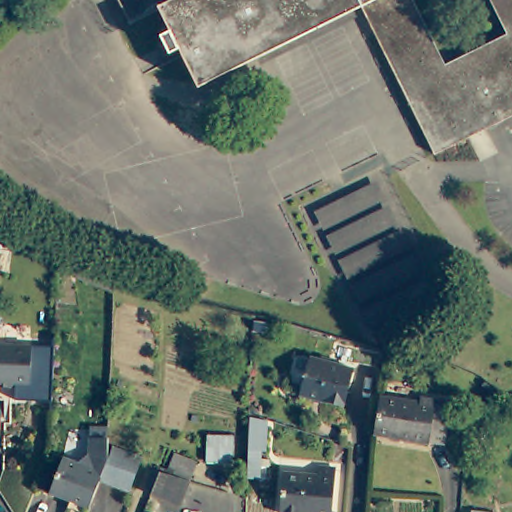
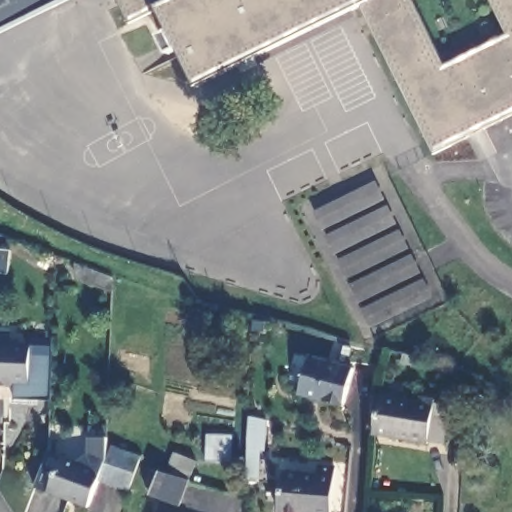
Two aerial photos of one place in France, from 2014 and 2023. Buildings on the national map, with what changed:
new [(0,32),(0,0),(65,0),(0,32)]
unchanged [(495,125),(434,155),(413,113),(380,49),(360,9),(240,69),(198,90),(177,48),(158,13),(128,27),(115,0),(512,0),(512,116),(495,125)]
unchanged [(377,182),(432,298),(371,329),(314,209),(377,182)]
unchanged [(26,386),(0,385),(0,346),(28,347),(26,386)]
unchanged [(352,368),(342,405),(298,392),(308,355),(352,368)]
unchanged [(422,404),(423,399),(438,402),(435,419),(449,421),(445,447),(431,445),(431,447),(364,435),(371,394),(422,404)]
unchanged [(242,481),(247,416),(276,418),(269,479),(242,481)]
unchanged [(109,456),(100,476),(96,485),(89,505),(50,488),(63,456),(76,462),(91,455),(92,435),(109,435),(109,453),(109,456)]
unchanged [(233,437),(233,462),(206,461),(206,436),(233,437)]
unchanged [(109,456),(109,453),(113,444),(119,447),(141,455),(128,488),(100,476),(109,456)]
unchanged [(165,471),(169,472),(176,450),(197,457),(190,479),(181,505),(151,495),(153,489),(146,486),(153,469),(160,472),(161,470),(165,471)]
unchanged [(327,512),(302,512),(275,510),(278,469),(313,472),(314,463),(331,464),(327,512)]

